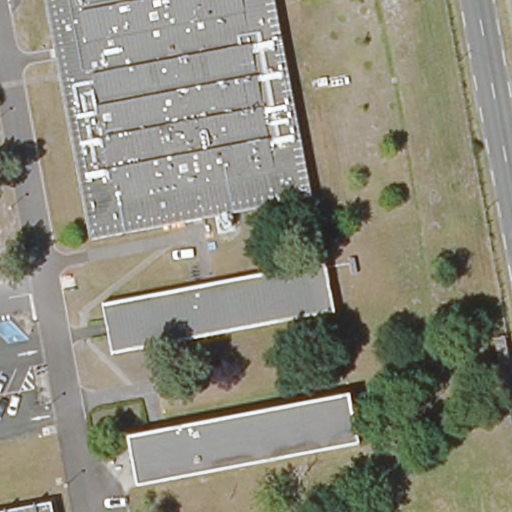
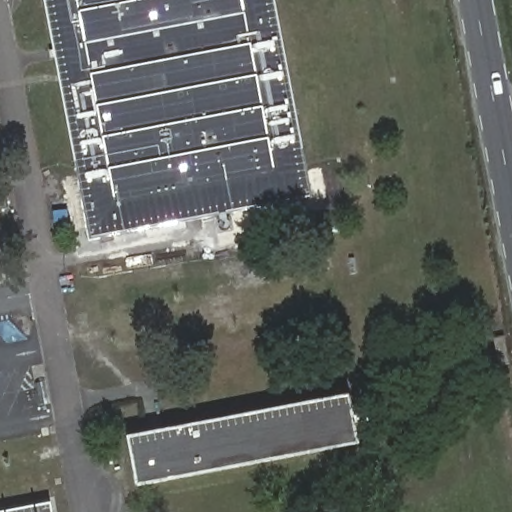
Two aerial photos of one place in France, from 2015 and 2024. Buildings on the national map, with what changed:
unchanged [(272,0),(308,197),(309,201),(83,243),(82,238),(39,0),(272,0)]
demolished [(325,263),(335,314),(107,357),(97,307),(325,263)]
unchanged [(352,395),(362,450),(136,493),(125,439),(352,395)]
unchanged [(49,512),(0,512),(0,507),(46,499),(49,512)]

